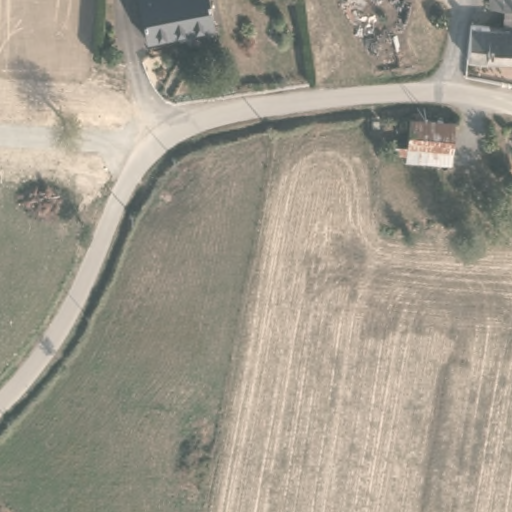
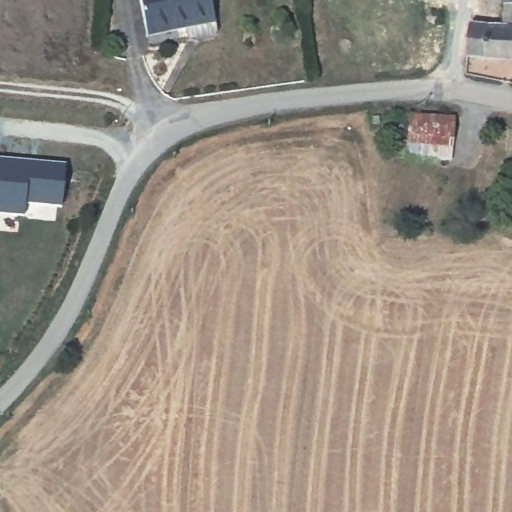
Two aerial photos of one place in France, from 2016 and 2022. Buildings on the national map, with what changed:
unchanged [(215,35),(211,39),(194,42),(189,38),(185,22),(148,30),(142,0),(215,0),(217,15),(217,28),(215,35)]
unchanged [(500,21),(500,4),(500,0),(512,0),(512,58),(465,57),(468,21),(500,21)]
unchanged [(401,152),(401,142),(415,142),(415,115),(457,116),(456,158),(413,158),(413,152),(401,152)]
new [(61,207),(25,203),(24,215),(0,213),(0,158),(64,164),(61,207)]

